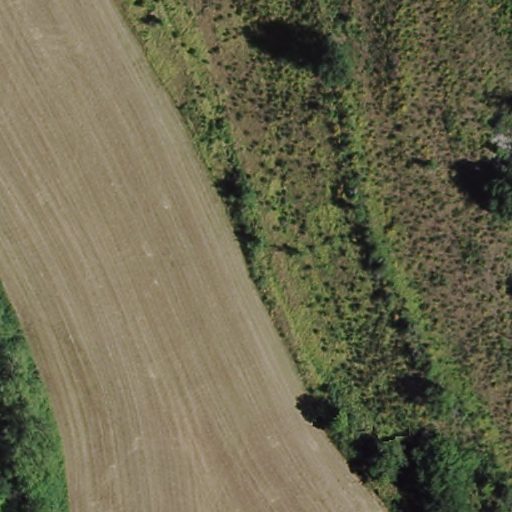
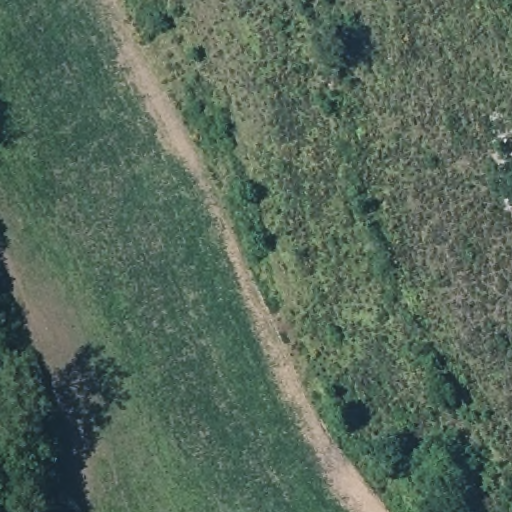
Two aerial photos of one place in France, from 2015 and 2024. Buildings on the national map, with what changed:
[]

